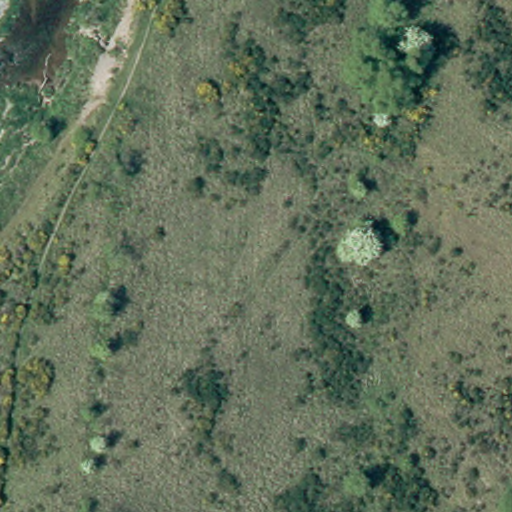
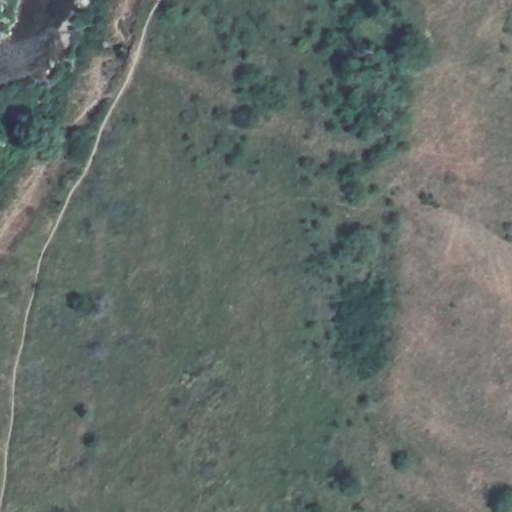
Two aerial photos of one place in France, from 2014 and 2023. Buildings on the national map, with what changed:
[]

